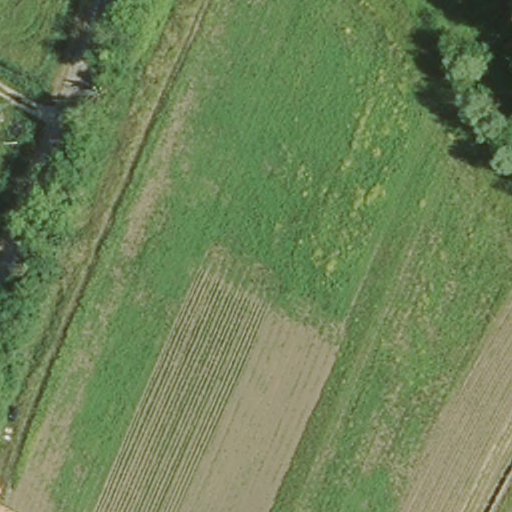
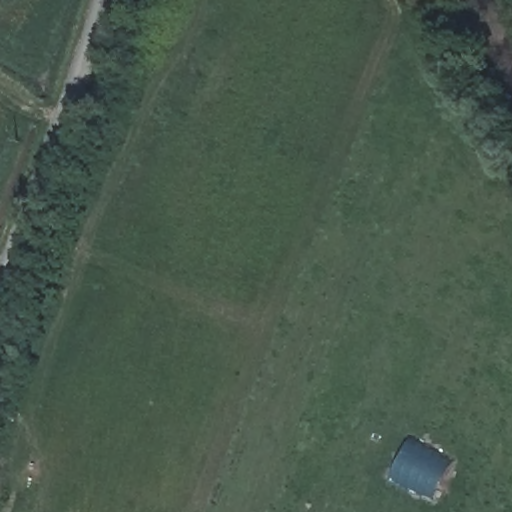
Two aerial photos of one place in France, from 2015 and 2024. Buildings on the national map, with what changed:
demolished [(0,112),(10,115),(0,166),(0,112)]
new [(391,478),(408,441),(449,460),(434,496),(391,478)]

